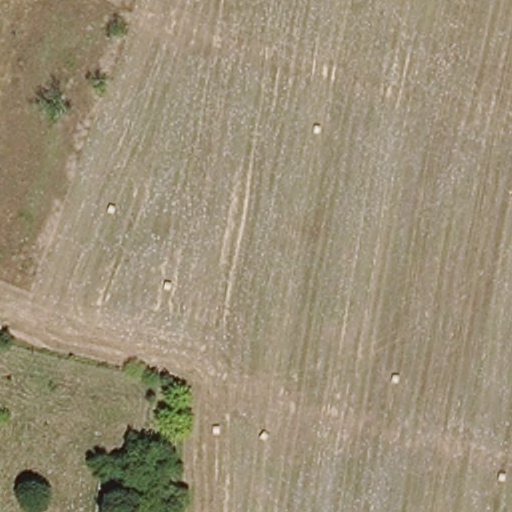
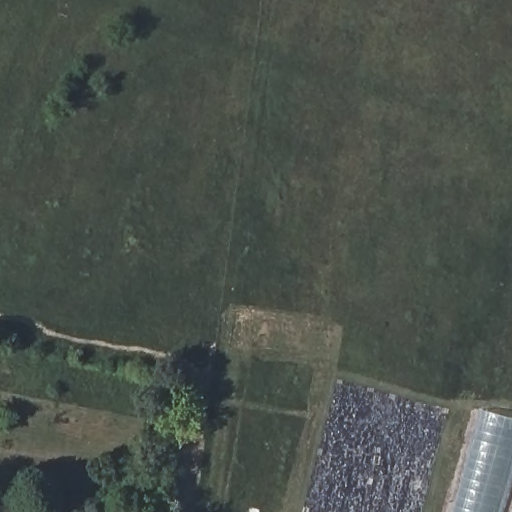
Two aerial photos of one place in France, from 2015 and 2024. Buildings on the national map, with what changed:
new [(453,512),(480,408),(512,417),(512,478),(503,512),(453,512)]

